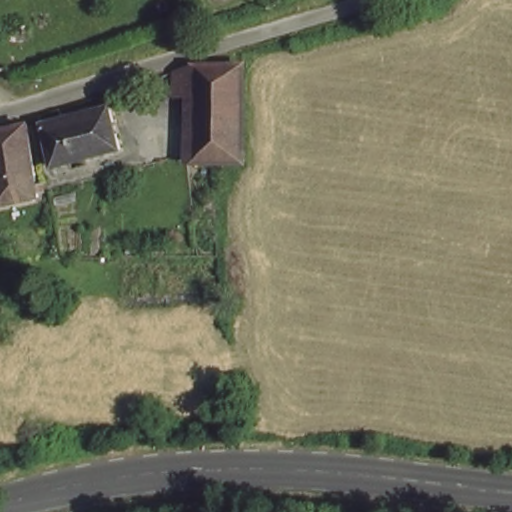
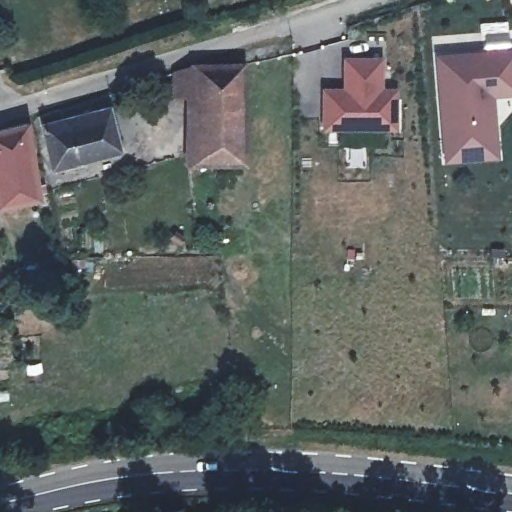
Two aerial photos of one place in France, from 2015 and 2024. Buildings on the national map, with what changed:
new [(499,159),(442,163),(435,54),(512,48),(512,95),(494,97),(499,159)]
new [(382,55),(383,84),(395,84),(395,120),(321,120),(320,83),(342,84),(343,54),(382,55)]
unchanged [(189,156),(192,88),(171,93),(172,69),(193,61),(243,62),(240,169),(189,156)]
unchanged [(109,110),(120,151),(53,168),(37,118),(55,113),(58,124),(109,110)]
unchanged [(0,208),(0,132),(27,124),(38,199),(0,208)]

